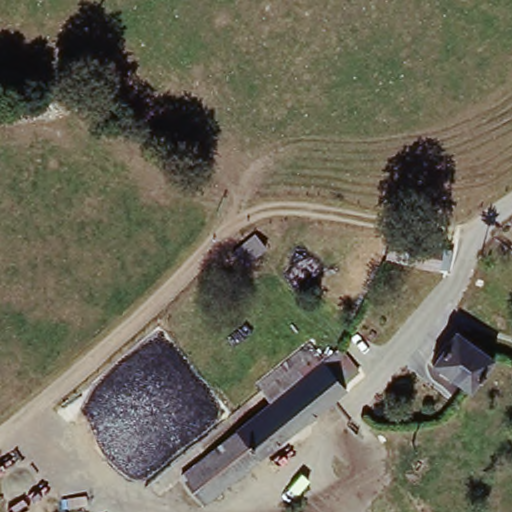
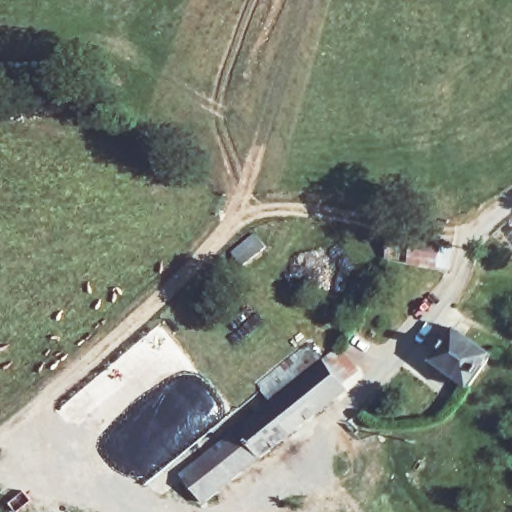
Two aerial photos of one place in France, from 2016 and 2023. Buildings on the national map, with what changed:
unchanged [(414,273),(405,272),(386,268),(389,242),(412,245),(416,246),(443,248),(455,249),(455,278),(414,273)]
unchanged [(250,258),(261,250),(279,273),(255,292),(239,268),(250,258)]
unchanged [(459,335),(497,362),(478,392),(436,362),(459,335)]
unchanged [(218,507),(198,482),(250,435),(248,431),(279,402),(265,388),(309,351),(327,371),(344,355),(366,374),(347,392),(351,396),(218,507)]

